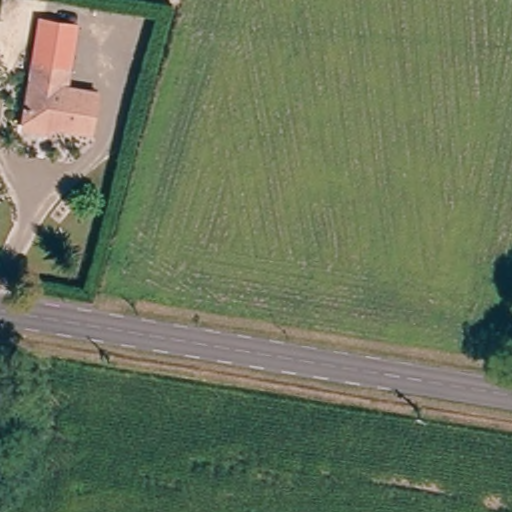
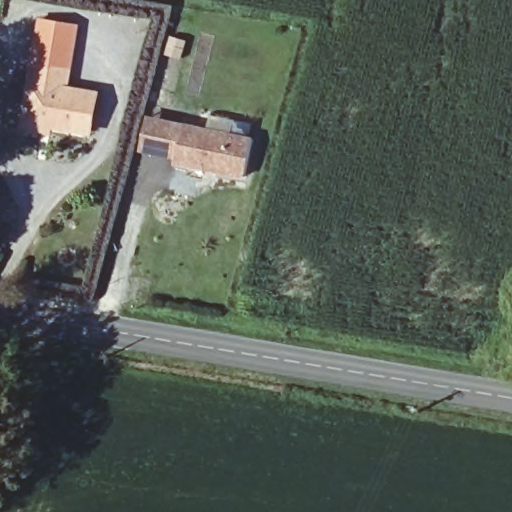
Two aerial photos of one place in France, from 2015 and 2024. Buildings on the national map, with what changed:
unchanged [(35,61),(42,18),(75,24),(68,65),(35,61)]
unchanged [(48,128),(26,125),(24,125),(26,115),(35,61),(68,65),(67,84),(95,89),(89,124),(49,119),(48,128)]
new [(253,136),(244,179),(173,164),(174,158),(139,151),(147,112),(253,136)]

